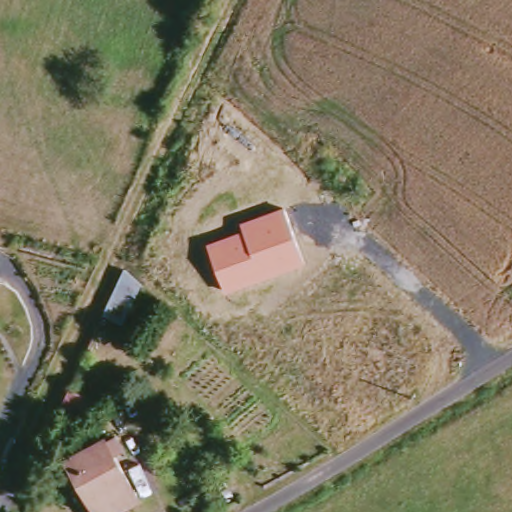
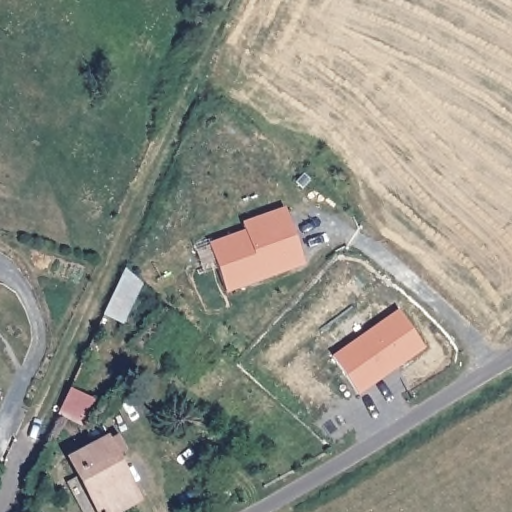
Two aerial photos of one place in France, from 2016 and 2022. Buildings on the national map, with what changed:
unchanged [(225,292),(209,244),(243,228),(242,224),(285,207),(304,264),(225,292)]
new [(333,356),(398,309),(425,347),(359,394),(333,356)]
unchanged [(99,399),(87,426),(60,413),(72,386),(99,399)]
unchanged [(136,499),(115,512),(95,512),(68,459),(102,437),(136,499)]

